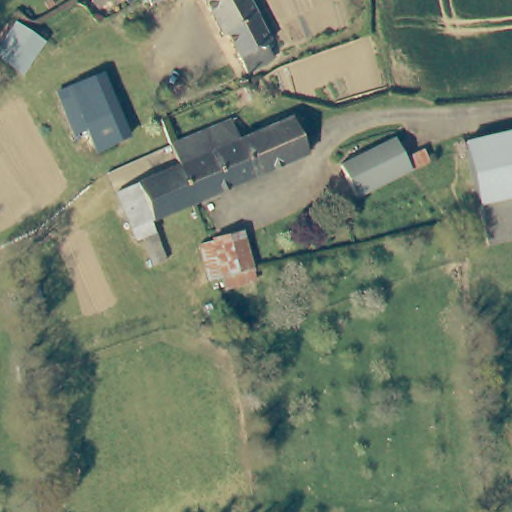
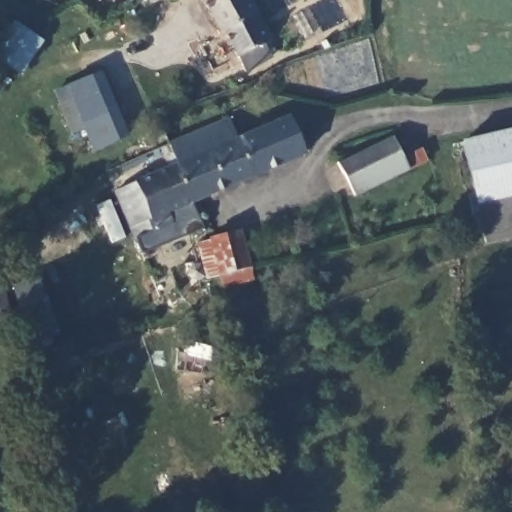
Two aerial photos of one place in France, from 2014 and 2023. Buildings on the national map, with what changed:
unchanged [(133,0),(126,4),(123,0),(133,0)]
unchanged [(146,0),(158,0),(147,4),(146,0)]
unchanged [(272,62),(247,74),(228,33),(223,35),(207,0),(249,0),(268,41),(264,45),(272,62)]
unchanged [(17,74),(0,63),(0,46),(13,25),(38,41),(17,74)]
unchanged [(75,85),(106,73),(118,105),(86,115),(75,85)]
unchanged [(88,131),(83,116),(86,115),(118,105),(120,110),(130,136),(95,151),(81,156),(74,136),(88,131)]
unchanged [(230,121),(239,141),(289,120),(304,154),(194,203),(179,166),(171,146),(230,121)]
unchanged [(512,134),(512,197),(475,205),(462,145),(512,134)]
unchanged [(355,199),(340,166),(395,140),(410,173),(355,199)]
unchanged [(168,214),(155,177),(179,166),(194,203),(168,214)]
unchanged [(153,267),(141,238),(134,241),(117,194),(155,177),(168,214),(149,223),(161,254),(163,261),(153,267)]
unchanged [(484,245),(479,223),(475,205),(512,197),(512,239),(484,245)]
unchanged [(244,268),(246,278),(221,284),(218,272),(202,276),(194,247),(237,238),(244,268)]

